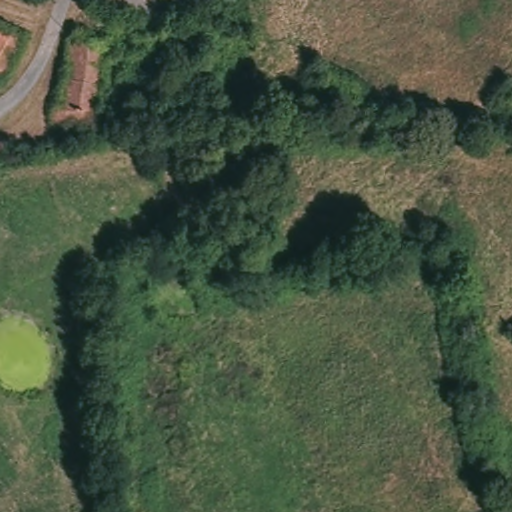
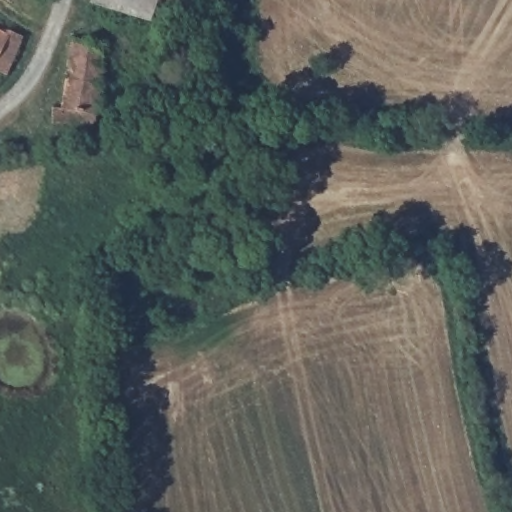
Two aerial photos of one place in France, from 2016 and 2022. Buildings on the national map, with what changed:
unchanged [(156,3),(150,25),(88,4),(89,0),(157,0),(156,3)]
unchanged [(202,17),(180,11),(156,3),(157,0),(206,0),(202,17)]
unchanged [(6,23),(21,31),(5,69),(0,66),(0,26),(4,28),(6,23)]
unchanged [(103,46),(94,124),(50,128),(51,112),(58,112),(69,42),(103,46)]

